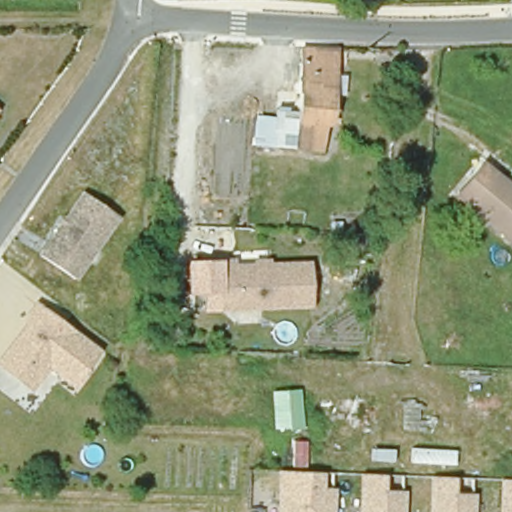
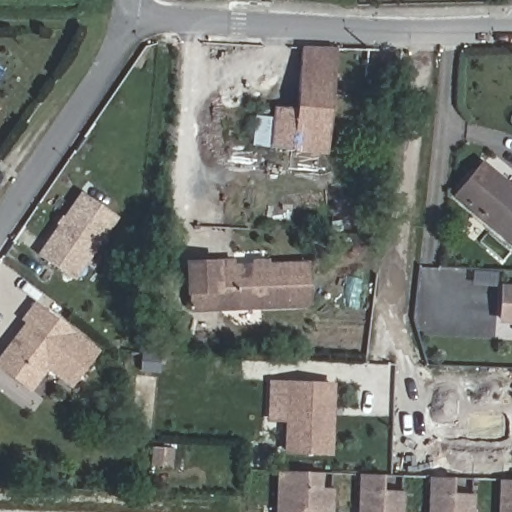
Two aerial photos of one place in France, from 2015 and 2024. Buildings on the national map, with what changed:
unchanged [(331,96),(335,96),(332,126),(328,125),(325,154),(275,149),(281,90),(301,92),(305,49),(335,50),(331,96)]
unchanged [(512,187),(512,239),(460,196),(487,166),(512,187)]
unchanged [(71,280),(37,254),(83,193),(117,219),(71,280)]
unchanged [(236,310),(235,293),(218,293),(218,260),(235,259),(236,266),(312,263),(314,306),(236,310)]
new [(502,284),(512,284),(512,324),(500,323),(502,284)]
unchanged [(20,380),(0,365),(0,360),(29,321),(24,318),(35,303),(96,349),(71,382),(47,365),(42,372),(30,387),(20,380)]
new [(331,452),(288,451),(290,382),(334,383),(331,452)]
demolished [(302,433),(271,433),(272,393),(300,392),(302,433)]
unchanged [(336,512),(283,512),(285,473),(321,474),(320,490),(336,490),(336,512)]
unchanged [(401,512),(361,512),(362,476),(367,476),(386,477),(386,492),(402,492),(401,512)]
unchanged [(470,512),(430,512),(431,478),(448,479),(455,480),(455,481),(455,482),(455,495),(471,495),(470,512)]
unchanged [(506,481),(512,481),(512,512),(505,512),(506,481)]

